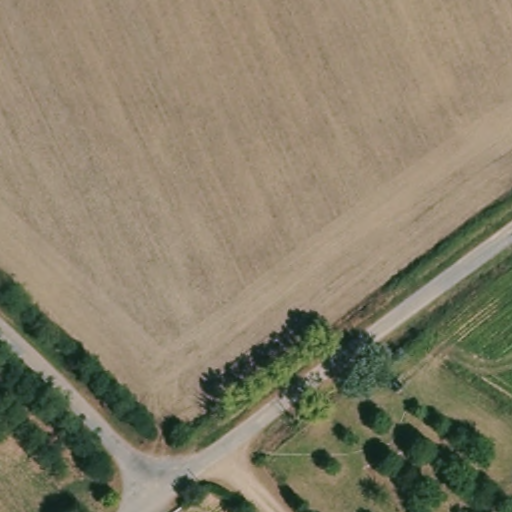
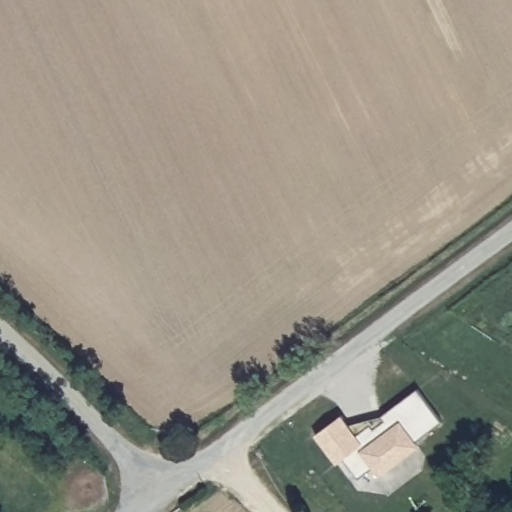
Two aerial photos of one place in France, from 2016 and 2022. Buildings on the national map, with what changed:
new [(347,428),(381,419),(417,392),(442,426),(414,446),(417,450),(378,478),(373,471),(357,483),(342,462),(336,467),(314,438),(340,419),(347,428)]

